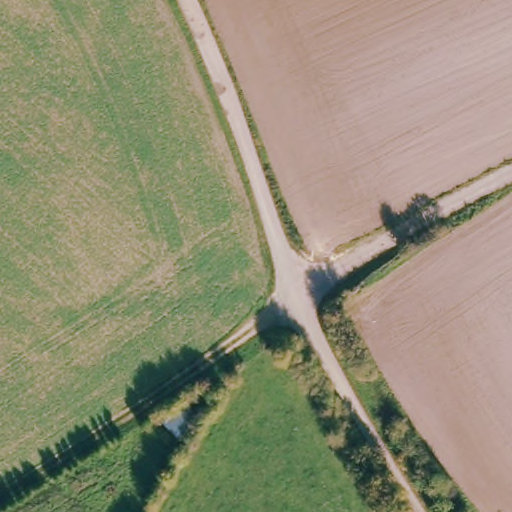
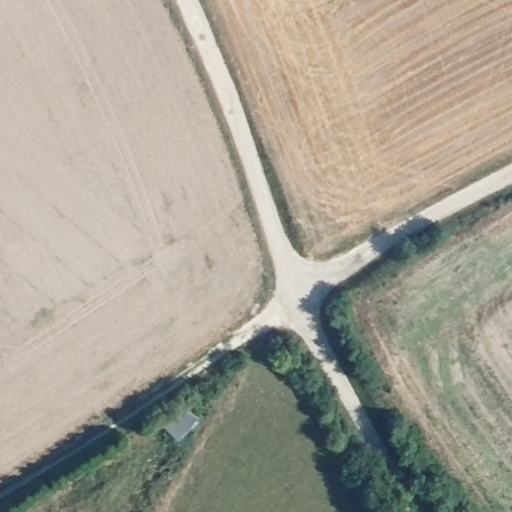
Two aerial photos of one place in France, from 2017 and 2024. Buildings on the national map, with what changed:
unchanged [(178,440),(164,428),(182,407),(199,422),(178,440)]

